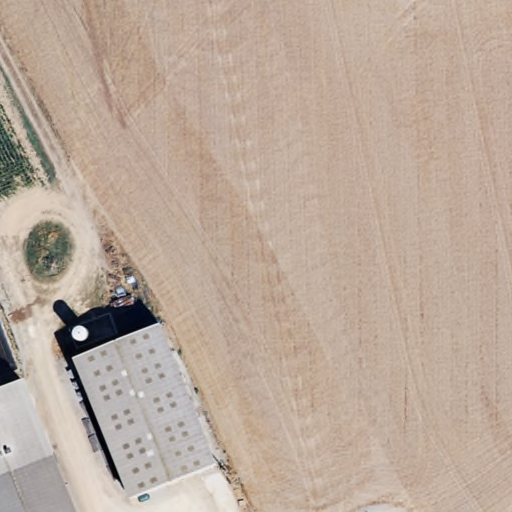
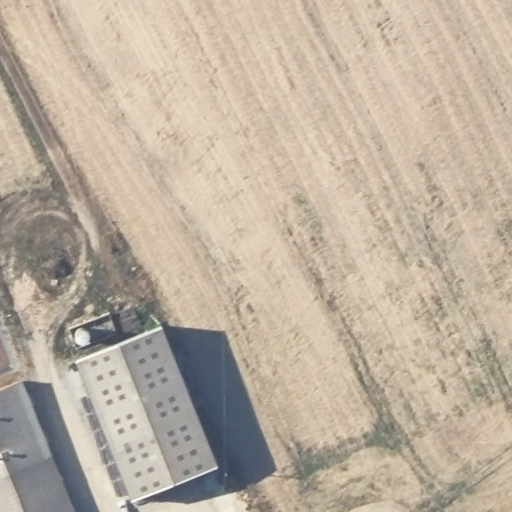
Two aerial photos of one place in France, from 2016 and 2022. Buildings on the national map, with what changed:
unchanged [(162,326),(218,465),(134,498),(79,358),(162,326)]
unchanged [(22,382),(74,512),(0,512),(0,390),(22,382)]

